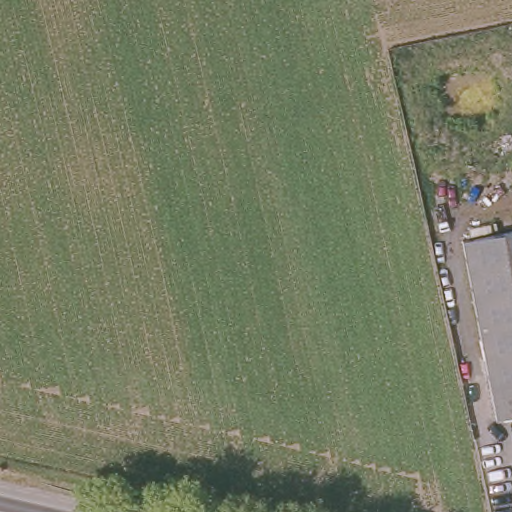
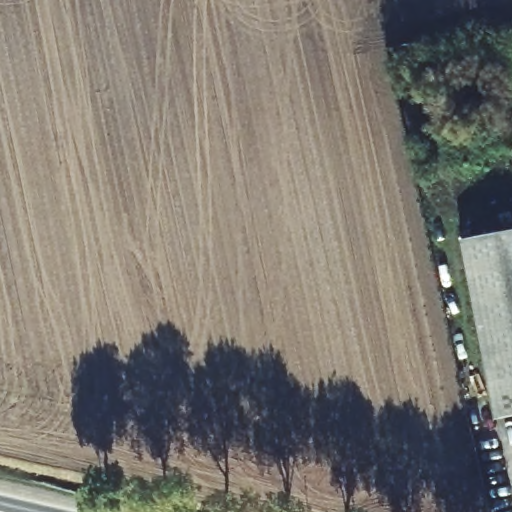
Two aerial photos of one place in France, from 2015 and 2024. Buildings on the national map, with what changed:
unchanged [(463,238),(512,229),(512,411),(496,414),(463,238)]

